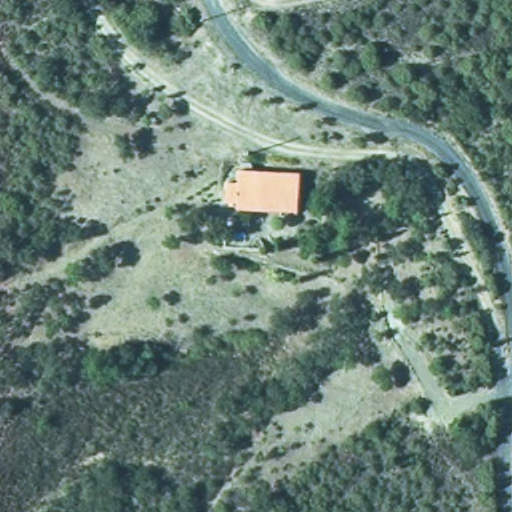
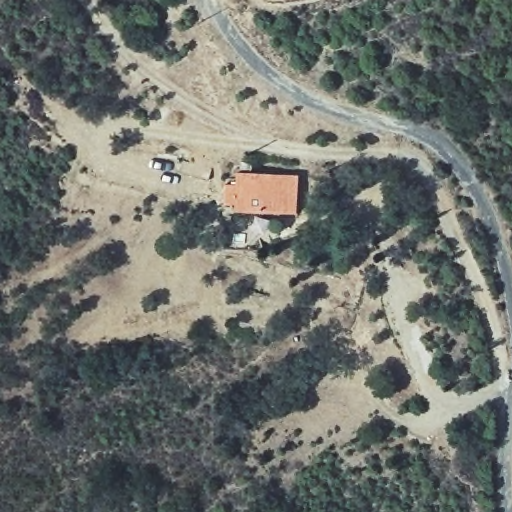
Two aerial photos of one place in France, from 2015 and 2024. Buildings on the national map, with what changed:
unchanged [(229,183),(240,183),(241,170),(303,173),(300,214),(239,213),(240,210),(227,202),(229,183)]

